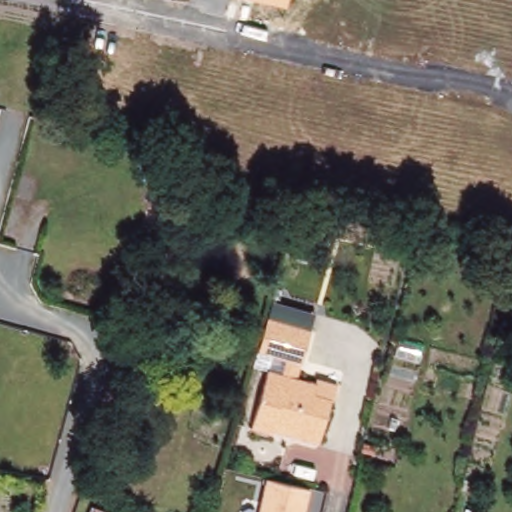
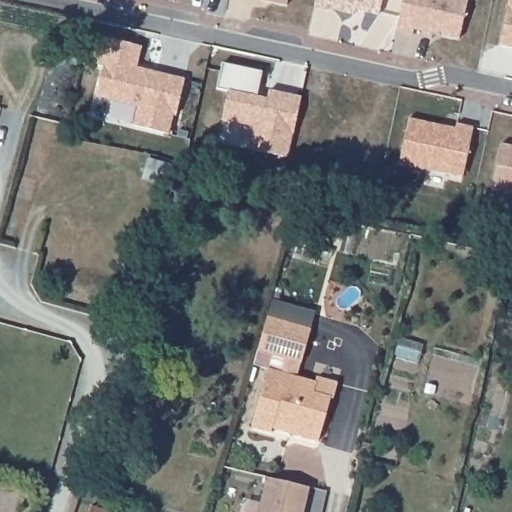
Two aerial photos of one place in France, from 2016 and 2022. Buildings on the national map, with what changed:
unchanged [(288,6),(256,0),(289,0),(288,6)]
new [(330,10),(314,6),(315,0),(382,0),(379,14),(354,9),(353,15),(330,10)]
new [(403,0),(467,0),(459,39),(413,29),(412,32),(396,29),(403,0)]
new [(512,48),(499,45),(508,0),(512,0),(512,48)]
new [(97,65),(104,37),(141,47),(136,67),(144,69),(185,79),(175,116),(173,115),(169,134),(132,125),(137,107),(96,96),(103,66),(97,65)]
new [(262,71),(257,96),(267,98),(269,90),(301,97),(288,157),(249,149),(254,126),(222,119),(228,91),(217,89),(222,63),(262,71)]
new [(409,118),(455,128),(456,124),(473,127),(462,177),(398,164),(409,118)]
new [(512,146),(512,194),(491,189),(501,143),(512,146)]
unchanged [(258,349),(267,315),(272,301),(315,312),(310,328),(301,362),(258,349)]
unchanged [(315,381),(316,377),(337,383),(332,398),(330,397),(318,440),(272,427),(271,430),(252,425),(268,368),(315,381)]
unchanged [(309,488),(304,512),(258,512),(266,476),(309,488)]
unchanged [(93,512),(95,506),(109,512),(93,512)]

